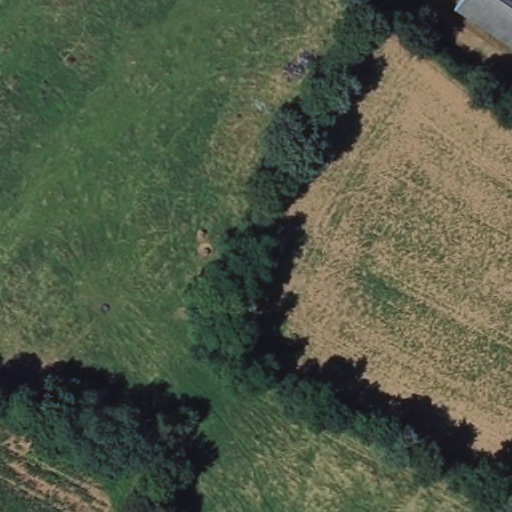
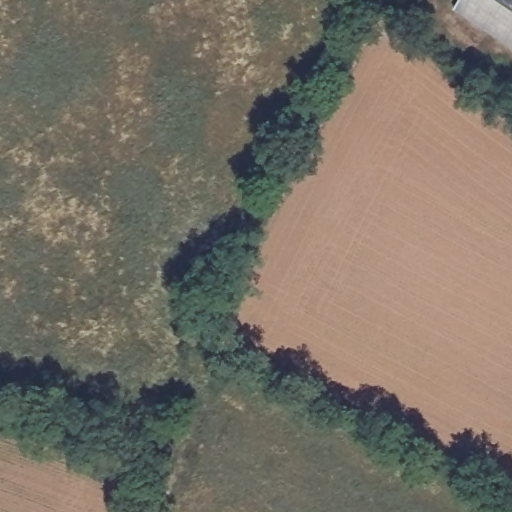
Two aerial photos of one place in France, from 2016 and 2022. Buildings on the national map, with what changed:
unchanged [(455,10),(461,0),(512,0),(512,48),(455,10)]

